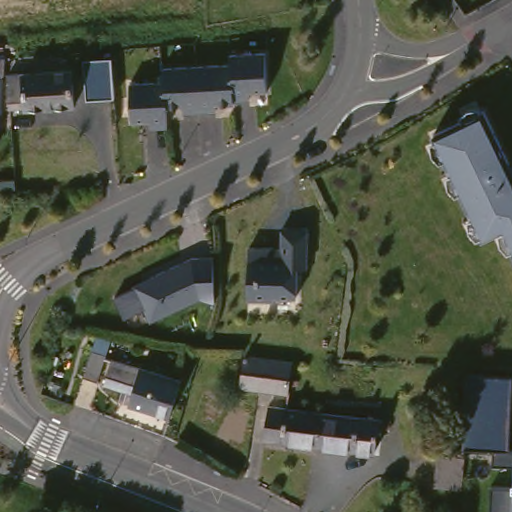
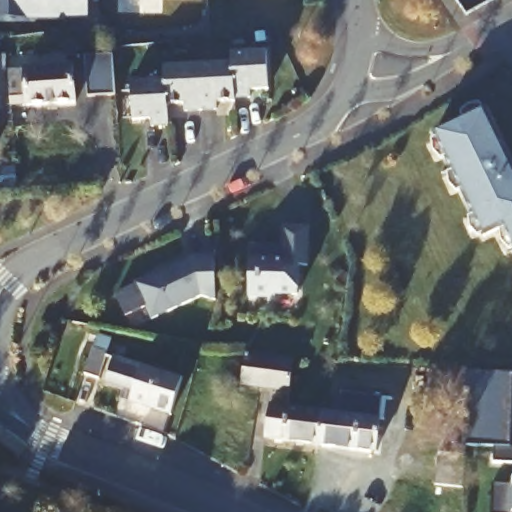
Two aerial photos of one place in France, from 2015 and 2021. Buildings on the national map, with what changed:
new [(87,20),(0,20),(0,0),(88,0),(87,20)]
unchanged [(271,43),(273,82),(255,83),(255,91),(239,91),(238,78),(237,55),(236,45),(271,43)]
unchanged [(120,51),(121,91),(94,93),(91,52),(120,51)]
unchanged [(237,55),(238,78),(239,91),(239,92),(239,94),(220,94),(220,102),(205,102),(204,56),(237,55)]
unchanged [(204,56),(205,102),(189,103),(188,96),(170,96),(169,71),(168,57),(204,56)]
unchanged [(16,62),(15,80),(12,80),(11,108),(0,108),(0,61),(2,61),(16,62)]
unchanged [(81,66),(84,102),(34,105),(34,102),(21,103),(19,70),(81,66)]
unchanged [(170,117),(155,118),(155,111),(136,111),(135,72),(169,71),(170,96),(170,117)]
unchanged [(512,151),(512,228),(491,238),(442,134),(493,110),(512,151)]
unchanged [(312,260),(302,260),(302,289),(280,288),(280,292),(254,292),(254,240),(277,240),(276,248),(286,248),(287,220),(312,220),(312,260)]
unchanged [(204,302),(200,302),(151,323),(145,310),(125,320),(122,314),(115,299),(129,292),(149,282),(152,280),(151,278),(191,258),(214,258),(215,300),(215,302),(204,302)]
unchanged [(94,373),(102,346),(106,333),(120,337),(115,350),(107,376),(94,373)]
unchanged [(255,350),(301,358),(296,390),(250,382),(255,350)]
unchanged [(114,379),(121,355),(190,377),(180,411),(140,399),(127,395),(130,385),(114,379)]
unchanged [(470,389),(498,391),(496,423),(468,421),(470,389)]
unchanged [(273,438),(277,403),(337,410),(333,445),(273,438)]
unchanged [(337,410),(388,416),(384,451),(333,445),(337,410)]
unchanged [(437,455),(463,458),(460,490),(433,487),(437,455)]

